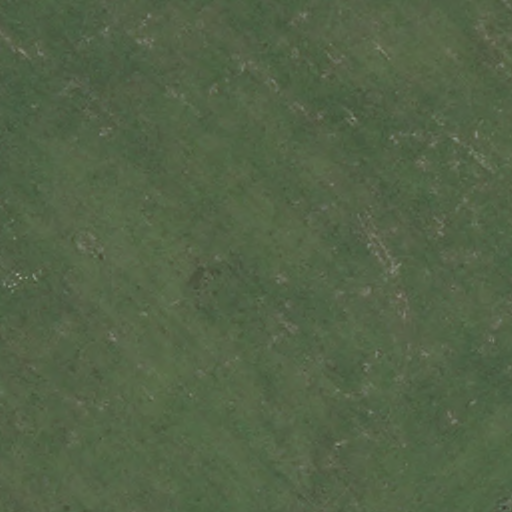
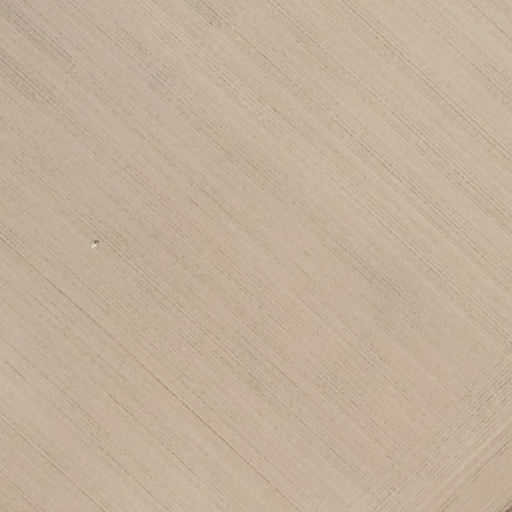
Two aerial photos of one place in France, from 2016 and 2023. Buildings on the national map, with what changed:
[]

